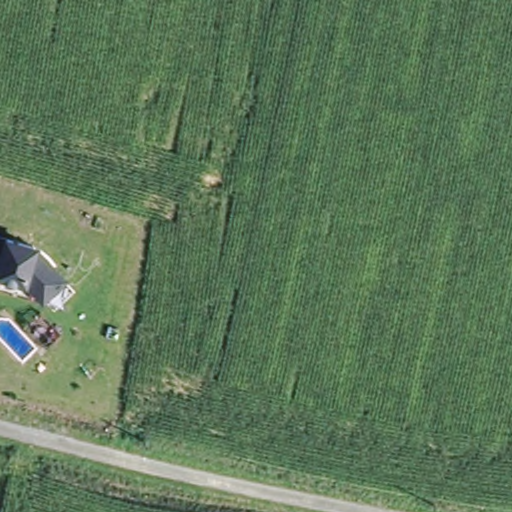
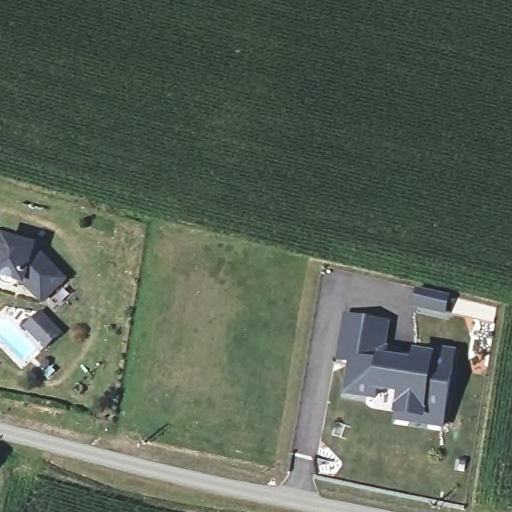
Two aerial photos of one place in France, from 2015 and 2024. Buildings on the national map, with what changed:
unchanged [(8,237),(44,247),(42,254),(68,281),(42,306),(22,286),(0,280),(0,233),(6,232),(8,237)]
new [(395,404),(397,392),(373,388),(372,397),(343,393),(348,361),(335,358),(341,317),(382,322),(377,358),(410,363),(411,352),(428,355),(429,348),(450,351),(440,417),(439,425),(393,418),(394,411),(395,404)]

